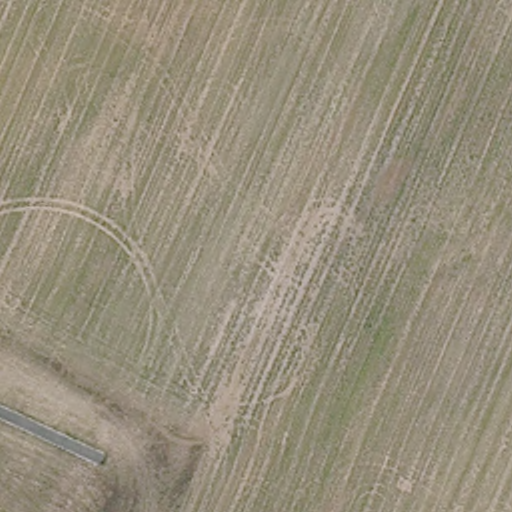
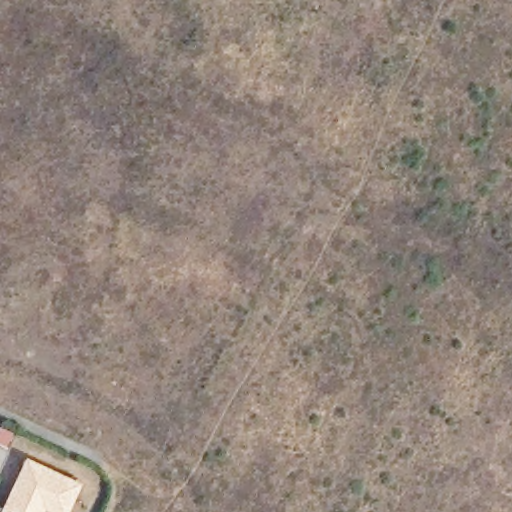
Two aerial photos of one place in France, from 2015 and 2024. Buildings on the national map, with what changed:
new [(8,453),(0,468),(0,449),(8,453)]
new [(3,506),(28,456),(82,481),(68,512),(57,512),(46,507),(44,512),(0,512),(0,504),(3,506)]

